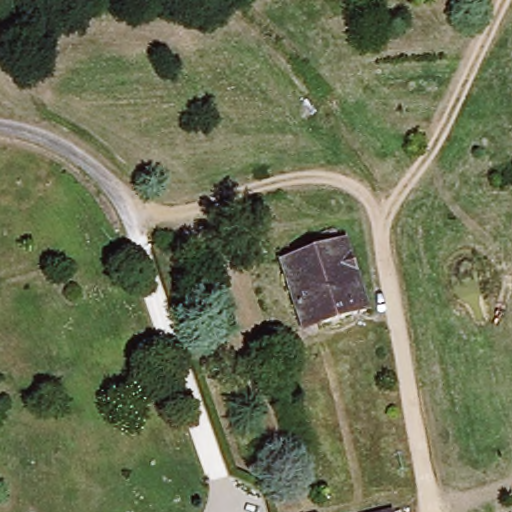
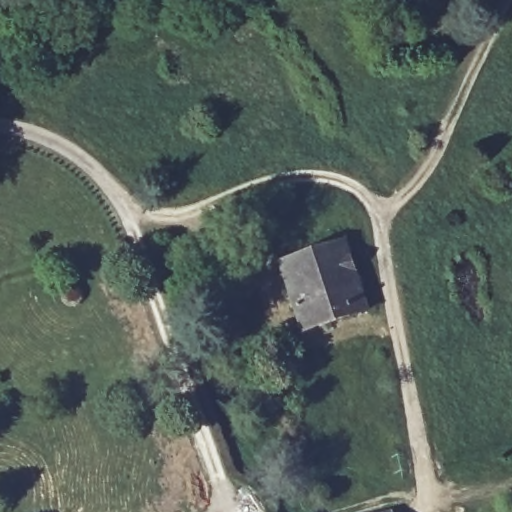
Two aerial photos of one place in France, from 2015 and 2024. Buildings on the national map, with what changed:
unchanged [(364,312),(316,327),(309,307),(295,312),(278,261),(339,241),(364,312)]

